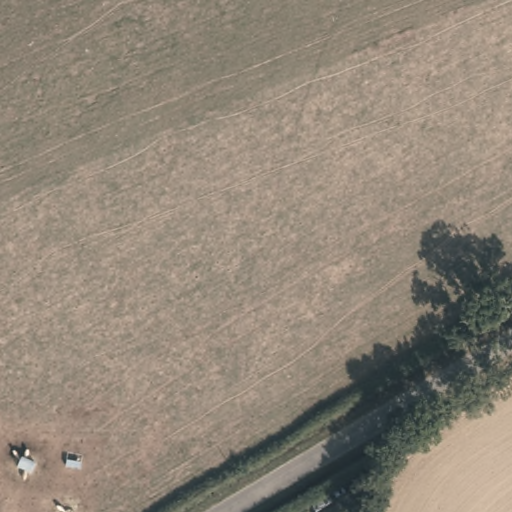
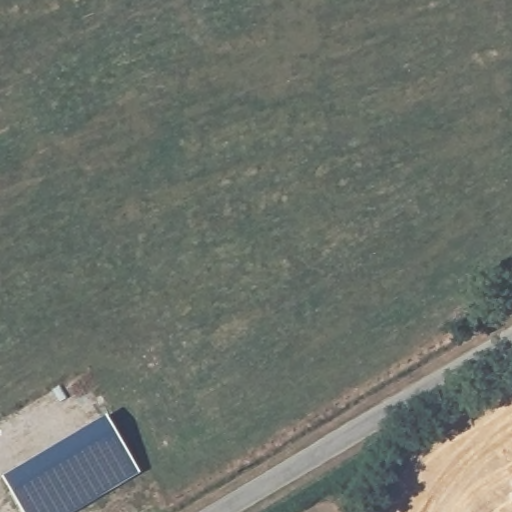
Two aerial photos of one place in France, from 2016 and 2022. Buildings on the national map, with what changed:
new [(0,477),(106,416),(139,474),(73,512),(21,512),(0,478),(0,477)]

